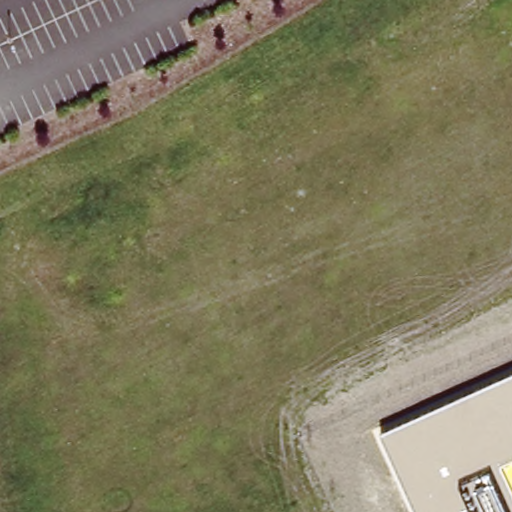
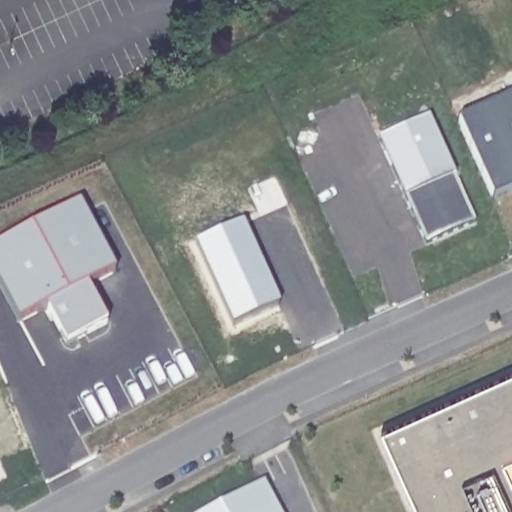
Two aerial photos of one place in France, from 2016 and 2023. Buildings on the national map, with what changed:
new [(457,121),(512,96),(512,191),(492,200),(457,121)]
new [(425,245),(404,197),(379,139),(430,115),(455,174),(477,222),(425,245)]
new [(79,205),(115,273),(87,288),(107,325),(67,346),(48,310),(20,323),(0,286),(0,246),(79,205)]
new [(241,225),(279,307),(233,328),(196,245),(241,225)]
unchanged [(381,433),(512,375),(512,461),(502,465),(512,487),(512,512),(417,512),(381,433)]
new [(265,480),(282,512),(206,512),(265,480)]

